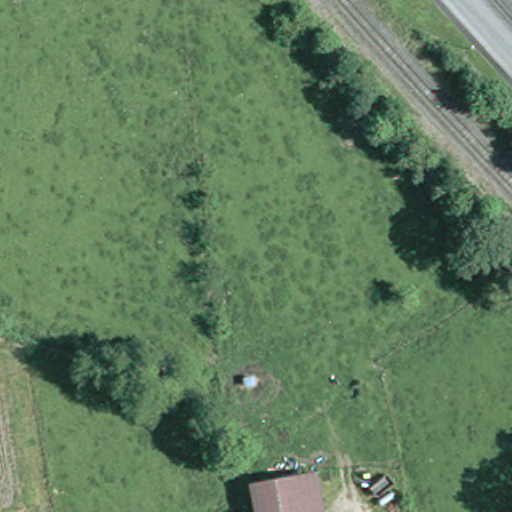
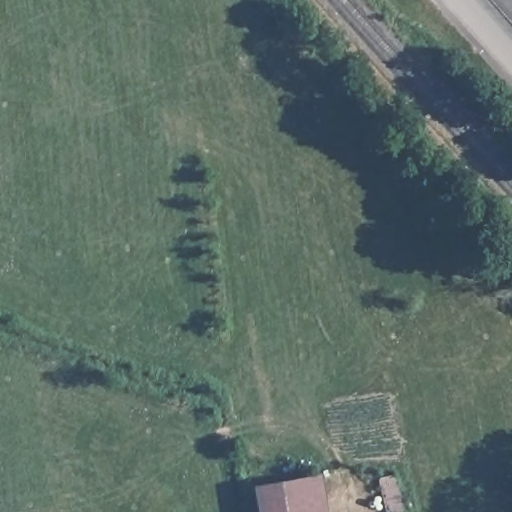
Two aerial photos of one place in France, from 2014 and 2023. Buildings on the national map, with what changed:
unchanged [(324,512),(256,512),(252,485),(317,473),(324,512)]

